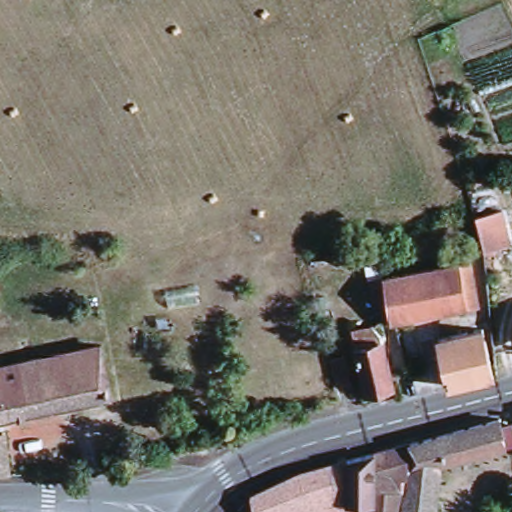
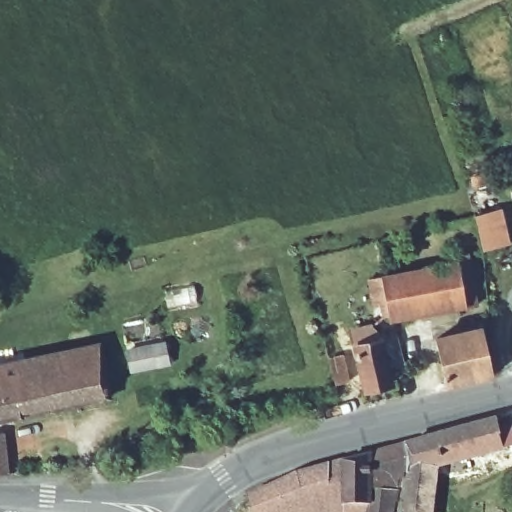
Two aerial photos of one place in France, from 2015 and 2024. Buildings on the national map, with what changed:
unchanged [(479,215),(505,208),(512,238),(512,244),(487,250),(485,237),(479,215)]
unchanged [(428,271),(427,267),(470,258),(480,304),(413,318),(398,321),(396,313),(389,315),(387,304),(378,305),(374,282),(388,280),(404,276),(428,271)]
unchanged [(482,323),(494,371),(451,381),(439,334),(482,323)]
unchanged [(355,335),(374,331),(383,339),(393,384),(366,390),(355,335)]
new [(166,341),(170,362),(157,364),(135,367),(131,347),(154,343),(166,341)]
unchanged [(111,400),(0,421),(0,366),(108,342),(111,400)]
unchanged [(348,384),(336,386),(330,357),(342,355),(348,384)]
unchanged [(504,430),(512,428),(512,449),(444,466),(436,512),(406,512),(409,492),(415,445),(502,422),(504,430)]
unchanged [(7,438),(12,473),(0,474),(0,439),(7,438)]
unchanged [(257,495),(318,471),(415,445),(409,492),(401,491),(397,512),(260,512),(257,495)]

